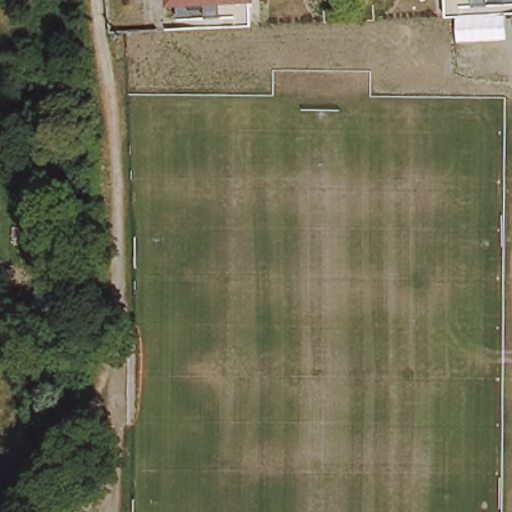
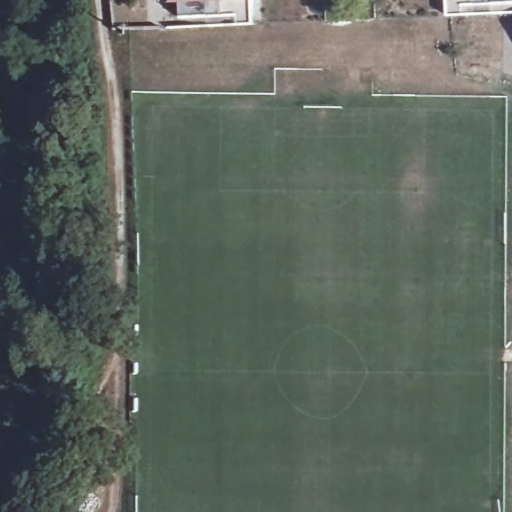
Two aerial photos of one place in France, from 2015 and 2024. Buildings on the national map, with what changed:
unchanged [(9,14),(11,0),(27,0),(24,16),(9,14)]
unchanged [(180,17),(179,0),(258,0),(259,14),(180,17)]
unchanged [(445,0),(512,0),(512,15),(447,20),(445,0)]
unchanged [(62,297),(52,296),(37,293),(39,268),(65,271),(62,297)]
unchanged [(0,474),(0,468),(2,469),(0,474)]

